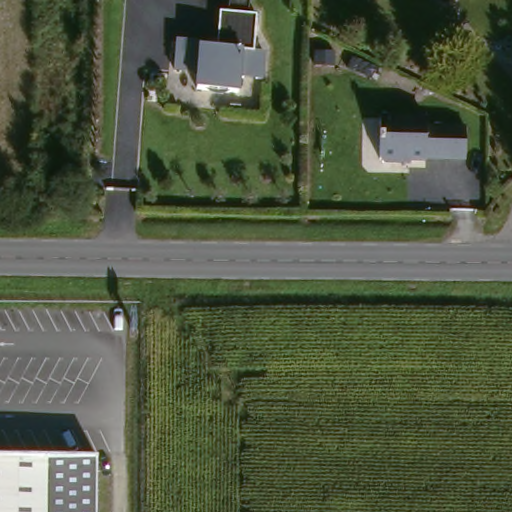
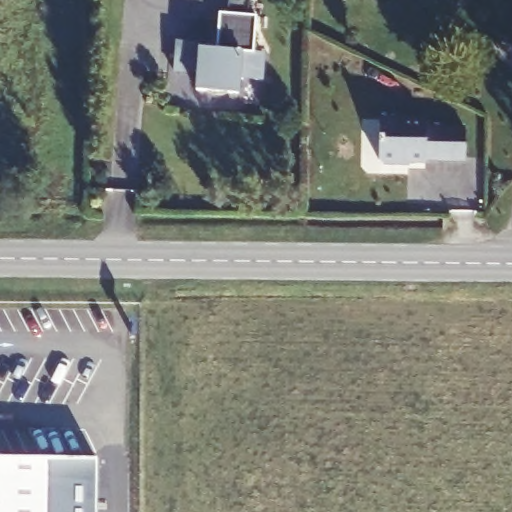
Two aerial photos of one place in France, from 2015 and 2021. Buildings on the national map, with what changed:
unchanged [(202,79),(178,77),(180,48),(206,50),(205,54),(221,55),(224,19),(261,22),(259,57),(269,58),(267,86),(244,84),(243,99),(201,96),(202,79)]
unchanged [(465,162),(426,161),(426,162),(400,162),(397,165),(384,165),(381,161),(381,120),(427,121),(426,128),(466,129),(465,162)]
unchanged [(103,463),(102,512),(0,512),(0,460),(103,463)]

